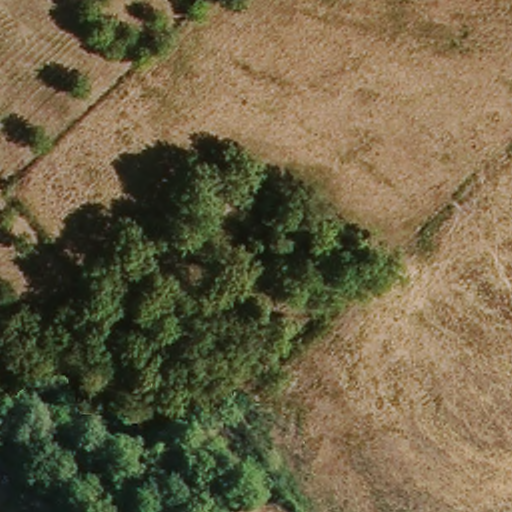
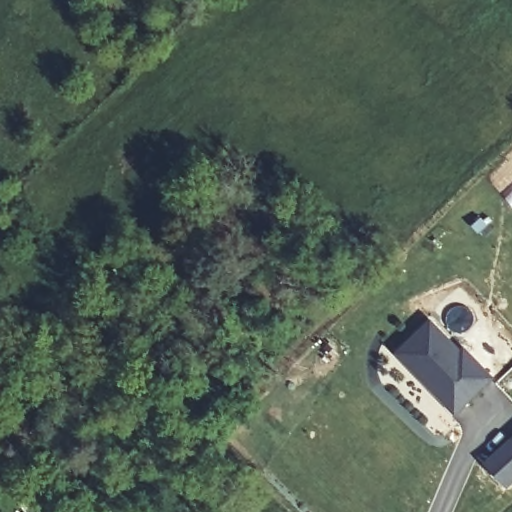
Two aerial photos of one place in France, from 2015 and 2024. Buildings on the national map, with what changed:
new [(454,418),(395,355),(430,320),(459,352),(463,347),(494,379),(454,418)]
new [(507,490),(482,465),(509,438),(512,441),(512,485),(507,490)]

